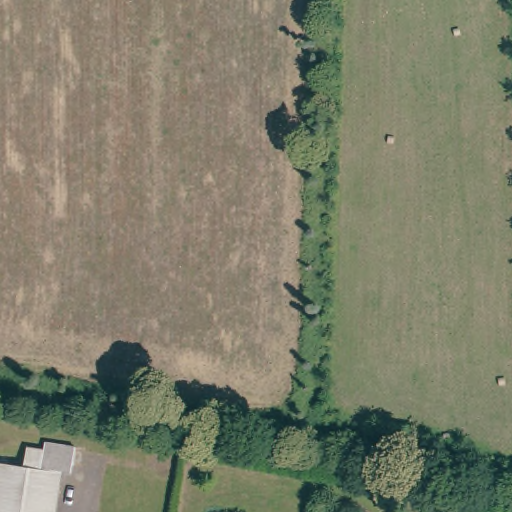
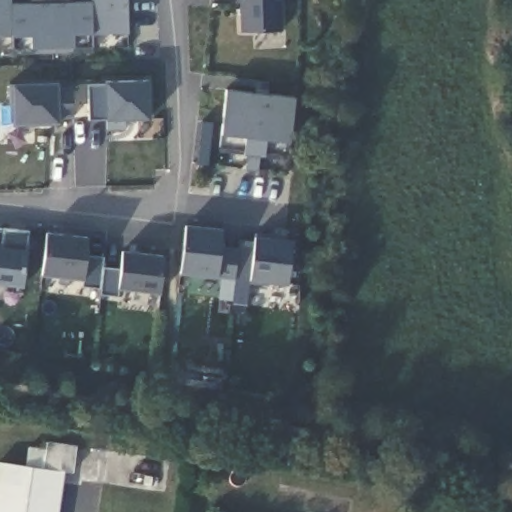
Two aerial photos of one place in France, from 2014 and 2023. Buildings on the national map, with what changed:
new [(17,55),(16,37),(0,38),(0,0),(15,0),(16,5),(43,4),(43,0),(68,0),(68,4),(96,2),(96,0),(131,0),(132,34),(97,35),(98,54),(77,55),(37,55),(17,55)]
new [(280,31),(240,34),(239,0),(279,0),(280,31)]
new [(259,91),(260,85),(261,79),(272,80),(271,85),(271,92),(300,95),(292,157),(263,154),(262,169),(251,167),(252,153),(224,150),(231,87),(259,91)]
new [(105,82),(147,82),(148,119),(126,120),(125,130),(107,130),(107,120),(89,120),(87,82),(105,82)]
new [(58,84),(58,90),(73,90),(74,118),(59,119),(58,124),(12,124),(12,85),(58,84)]
new [(223,230),(220,250),(237,252),(234,280),(215,278),(181,273),(186,225),(223,230)]
new [(1,247),(4,229),(29,232),(27,250),(22,287),(0,285),(0,247),(1,247)]
new [(87,238),(85,256),(103,258),(102,266),(120,268),(122,251),(164,258),(158,293),(118,287),(117,296),(99,294),(101,288),(82,285),(82,280),(40,273),(45,233),(87,238)]
new [(292,241),(287,285),(249,281),(255,236),(292,241)]
unchanged [(4,460),(29,464),(31,445),(50,447),(51,439),(81,443),(77,470),(67,469),(59,512),(0,512),(0,485),(4,460)]
new [(163,491),(102,481),(107,453),(167,462),(163,491)]

